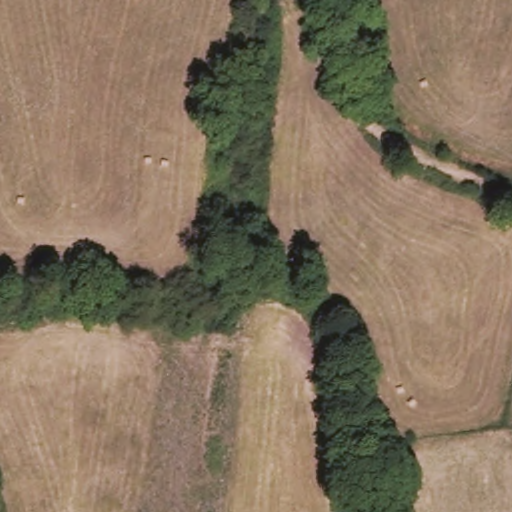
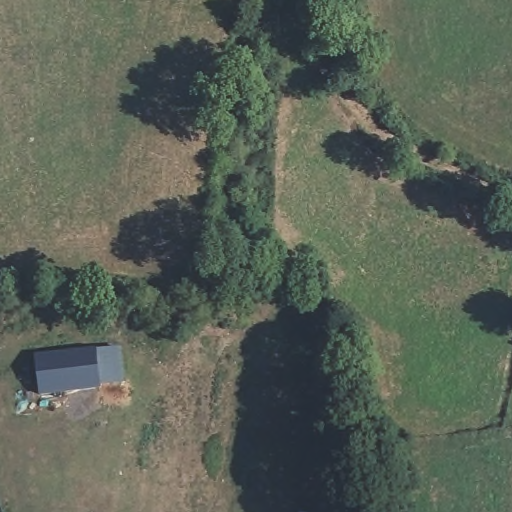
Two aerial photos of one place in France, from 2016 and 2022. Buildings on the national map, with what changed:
new [(95,349),(99,389),(42,394),(37,354),(95,349)]

